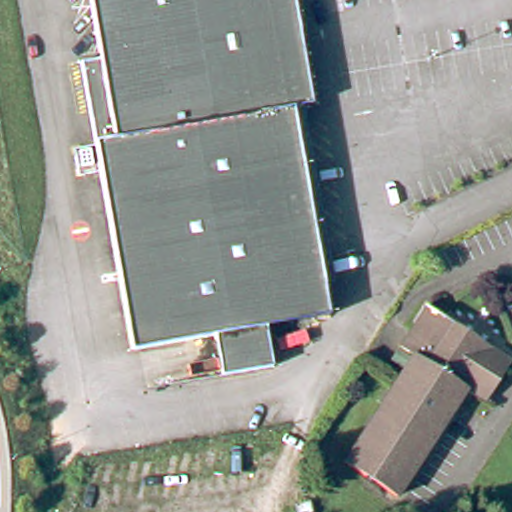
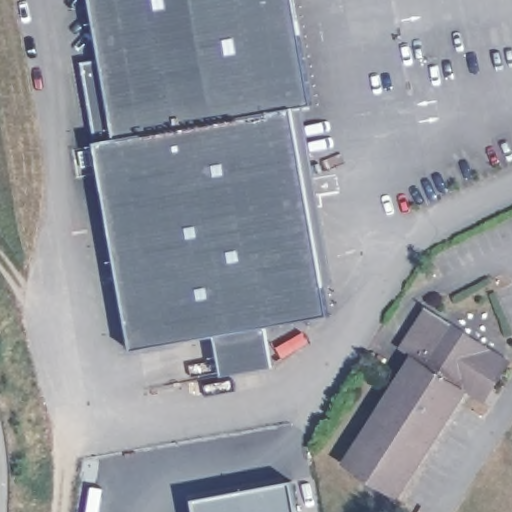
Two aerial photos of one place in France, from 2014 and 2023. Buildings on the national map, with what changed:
unchanged [(318,105),(298,108),(334,315),(271,325),(278,366),(226,375),(219,335),(136,350),(85,62),(106,59),(96,0),(300,0),(318,105)]
unchanged [(414,357),(401,349),(426,310),(503,358),(509,362),(484,403),(477,398),(466,391),(398,498),(345,465),(414,357)]
new [(291,481),(297,512),(196,512),(194,498),(291,481)]

